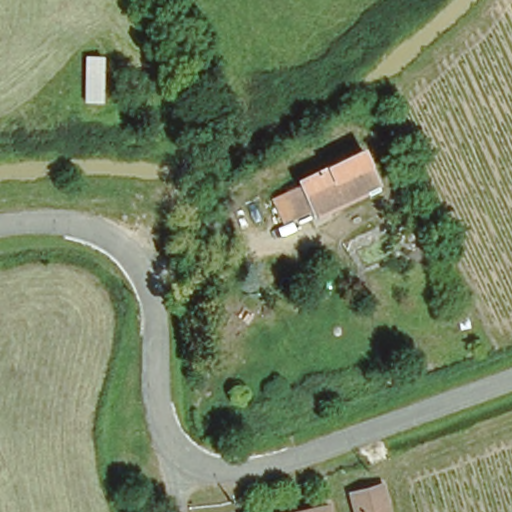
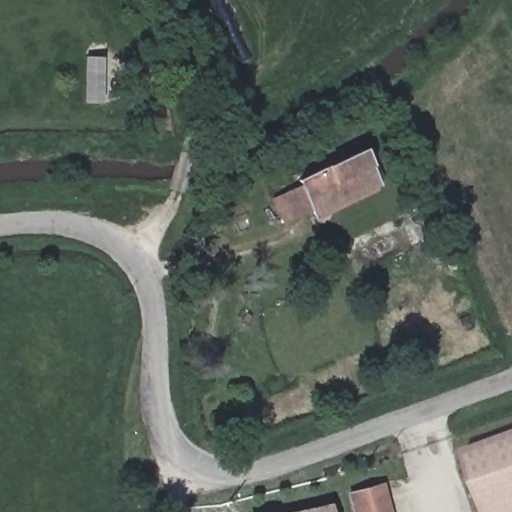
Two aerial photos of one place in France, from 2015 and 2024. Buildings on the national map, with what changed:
unchanged [(302,178),(299,171),(364,144),(382,184),(316,214),(313,205),(287,218),(273,190),(302,178)]
new [(486,512),(464,451),(512,434),(512,512),(486,512)]
unchanged [(384,482),(394,512),(358,512),(352,492),(384,482)]
unchanged [(337,512),(276,512),(275,510),(333,495),(337,512)]
unchanged [(276,512),(266,512),(275,510),(276,512)]

